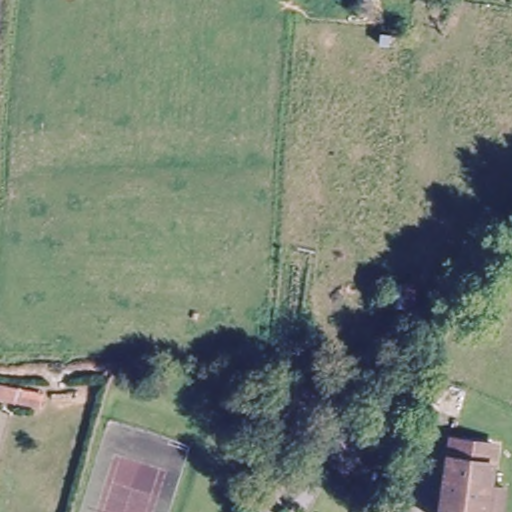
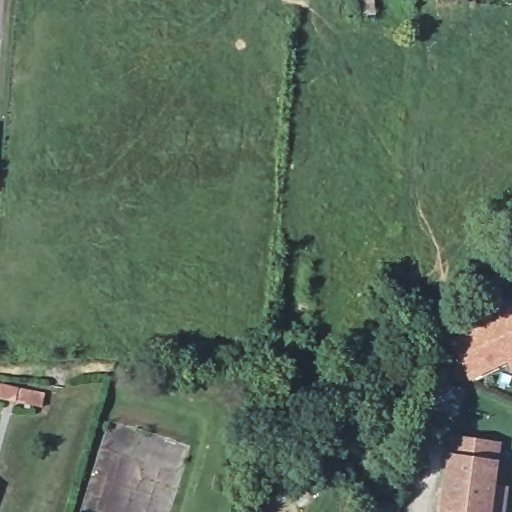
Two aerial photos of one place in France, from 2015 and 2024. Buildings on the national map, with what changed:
unchanged [(417,331),(387,329),(390,285),(420,288),(417,331)]
new [(506,363),(469,382),(449,341),(482,325),(478,314),(506,299),(512,311),(512,374),(511,375),(506,363)]
unchanged [(444,512),(456,438),(500,444),(494,485),(506,486),(501,512),(444,512)]

